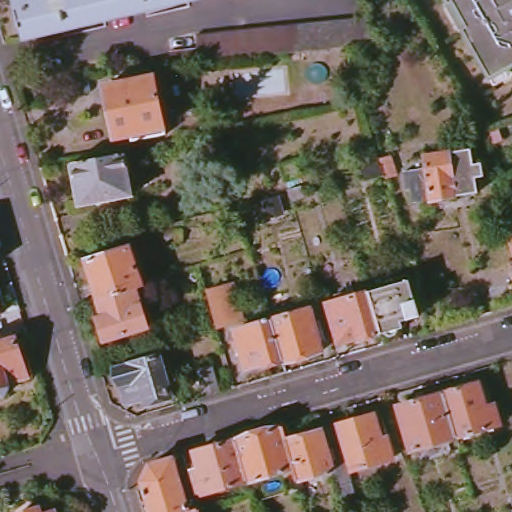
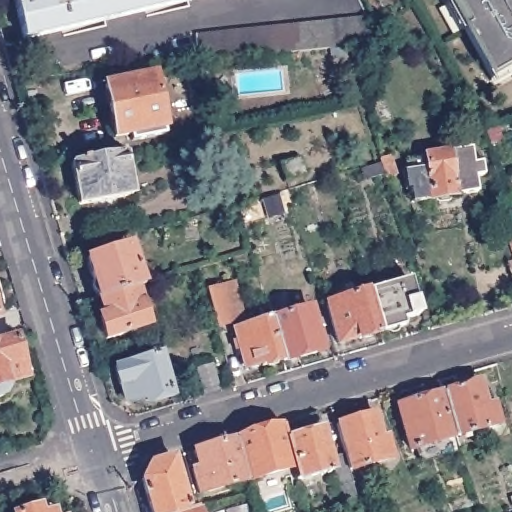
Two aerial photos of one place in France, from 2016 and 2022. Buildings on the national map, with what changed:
unchanged [(22,40),(13,0),(191,0),(22,40)]
unchanged [(498,74),(470,27),(465,29),(451,4),(455,2),(453,0),(512,0),(512,77),(502,82),(498,74)]
unchanged [(199,47),(197,34),(369,16),(382,41),(348,44),(173,63),(172,50),(199,47)]
unchanged [(165,133),(150,136),(149,129),(116,136),(106,85),(155,75),(165,133)]
unchanged [(470,147),(473,163),(481,162),(483,175),(475,176),(477,191),(450,195),(450,197),(449,200),(439,201),(436,199),(436,198),(431,198),(430,197),(412,199),(410,187),(407,187),(404,167),(407,166),(406,159),(424,157),(424,154),(449,151),(470,147)]
unchanged [(135,196),(82,206),(73,165),(127,154),(135,196)]
unchanged [(305,175),(285,181),(280,163),(299,157),(305,175)]
unchanged [(184,243),(164,244),(164,228),(182,227),(184,243)]
unchanged [(130,247),(142,286),(136,288),(100,299),(88,260),(130,247)]
unchanged [(420,314),(402,319),(404,325),(382,331),(370,290),(410,278),(420,314)]
unchanged [(107,339),(100,319),(105,318),(100,299),(136,288),(147,327),(107,339)]
unchanged [(357,336),(339,341),(327,301),(370,290),(382,331),(357,338),(357,336)]
unchanged [(235,327),(222,331),(217,316),(214,306),(228,302),(235,327)]
unchanged [(0,309),(2,313),(0,314),(0,309)]
unchanged [(315,311),(328,354),(289,365),(289,364),(285,350),(277,323),(315,311)]
unchanged [(267,367),(250,372),(239,334),(277,323),(285,350),(289,364),(269,370),(267,367)]
unchanged [(7,378),(9,385),(1,396),(0,396),(0,340),(15,336),(26,371),(7,378)]
unchanged [(172,393),(169,397),(150,402),(147,400),(145,395),(125,400),(122,385),(119,386),(114,367),(160,354),(172,393)]
unchanged [(218,386),(204,391),(196,365),(210,361),(218,386)]
unchanged [(480,382),(488,379),(501,424),(457,436),(444,392),(480,382)]
unchanged [(399,405),(444,392),(457,436),(411,450),(399,405)]
unchanged [(346,449),(337,419),(377,409),(385,433),(389,431),(395,453),(352,466),(346,449)]
unchanged [(249,474),(237,433),(284,419),(287,433),(295,460),(295,462),(249,476),(249,474)]
unchanged [(287,433),(325,423),(334,452),(346,449),(352,466),(355,477),(342,482),(337,465),(300,475),(299,472),(295,462),(295,460),(287,433)]
unchanged [(249,474),(200,488),(192,465),(200,462),(195,445),(195,444),(237,433),(249,474)]
unchanged [(147,467),(170,461),(185,512),(145,512),(137,486),(147,467)]

